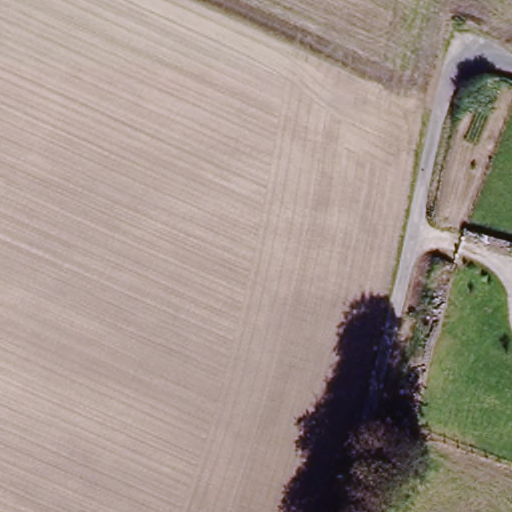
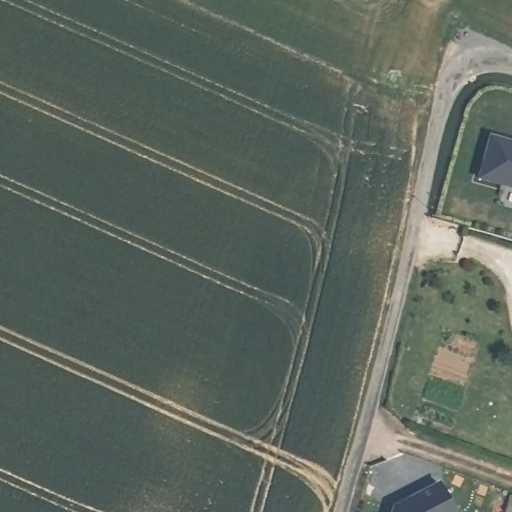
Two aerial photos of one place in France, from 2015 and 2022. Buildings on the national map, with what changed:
new [(512,143),(512,189),(478,179),(489,138),(512,143)]
new [(392,512),(394,506),(439,484),(455,512),(392,512)]

